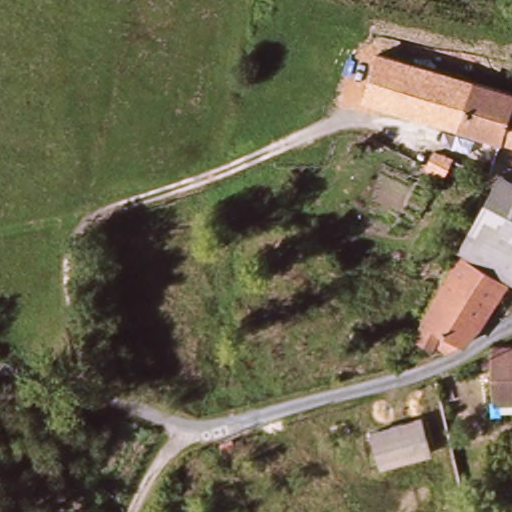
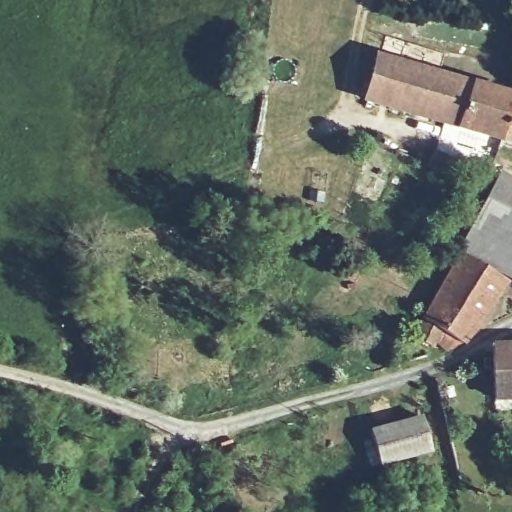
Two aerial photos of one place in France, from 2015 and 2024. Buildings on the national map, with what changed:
unchanged [(512,91),(512,125),(506,139),(364,99),(377,56),(512,91)]
unchanged [(506,139),(512,125),(512,141),(506,139)]
unchanged [(441,151),(429,173),(417,165),(428,146),(441,151)]
unchanged [(512,172),(512,265),(494,255),(470,245),(486,219),(512,172)]
unchanged [(512,273),(512,283),(502,300),(492,314),(482,333),(473,337),(453,323),(446,331),(427,317),(470,245),(512,273)]
unchanged [(512,343),(512,393),(503,393),(501,342),(512,343)]
unchanged [(421,431),(427,446),(382,466),(371,442),(367,434),(413,414),(421,431)]

